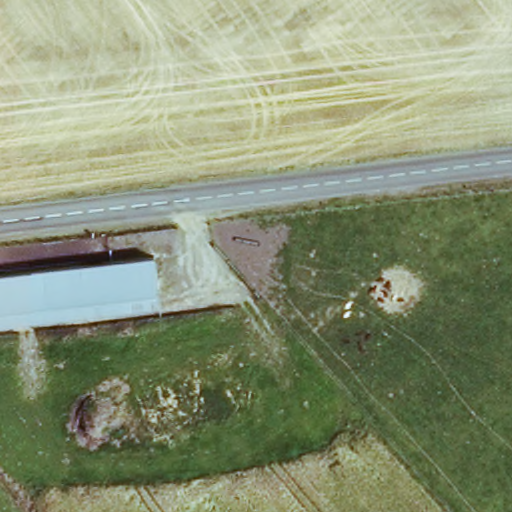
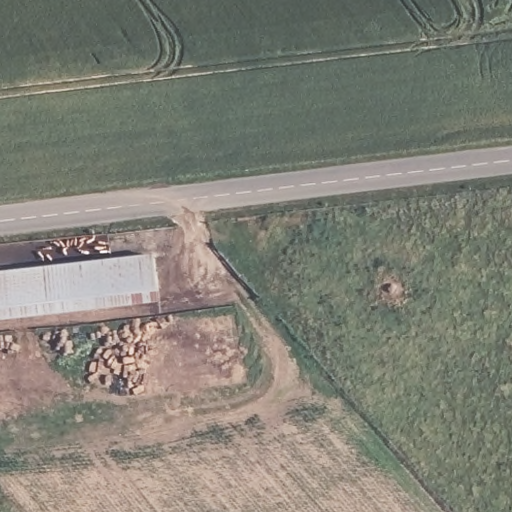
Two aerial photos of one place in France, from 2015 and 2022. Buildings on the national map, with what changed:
unchanged [(158,296),(0,315),(0,271),(154,254),(158,296)]

